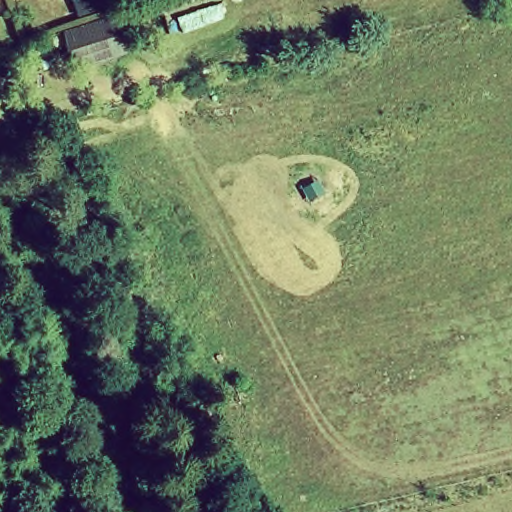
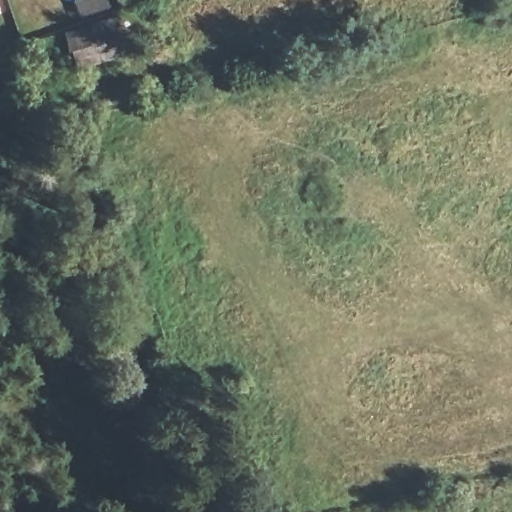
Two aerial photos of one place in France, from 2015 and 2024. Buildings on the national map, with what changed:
unchanged [(127,16),(135,56),(72,71),(60,32),(77,28),(68,0),(102,0),(110,19),(127,16)]

